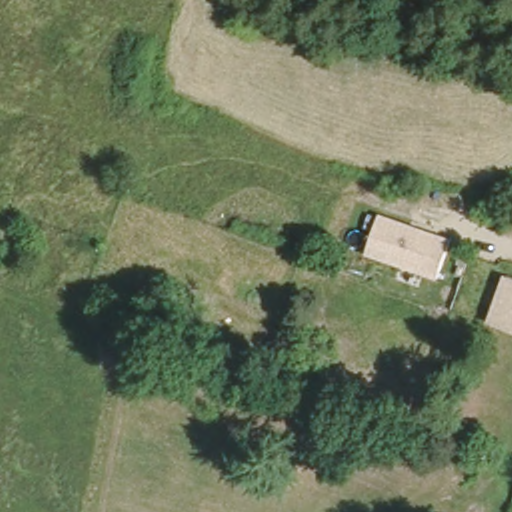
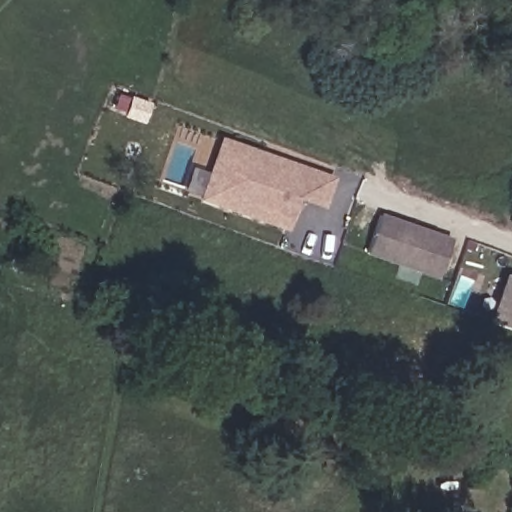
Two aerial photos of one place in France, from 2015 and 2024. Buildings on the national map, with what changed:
new [(213,145),(266,163),(267,159),(325,179),(316,204),(302,200),(291,231),(194,199),(210,153),(213,145)]
unchanged [(438,279),(366,254),(380,213),(453,238),(438,279)]
unchanged [(489,318),(501,287),(507,271),(512,273),(512,326),(489,318)]

